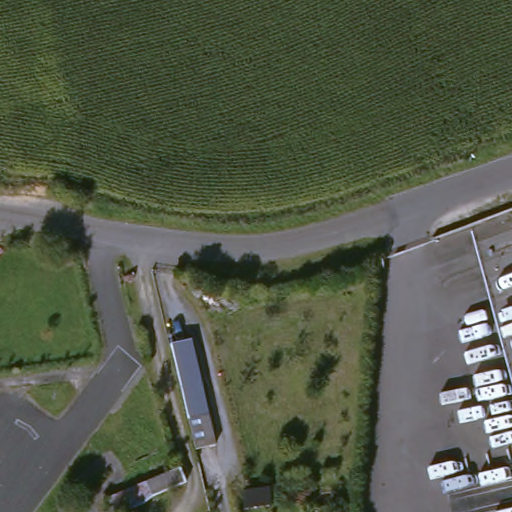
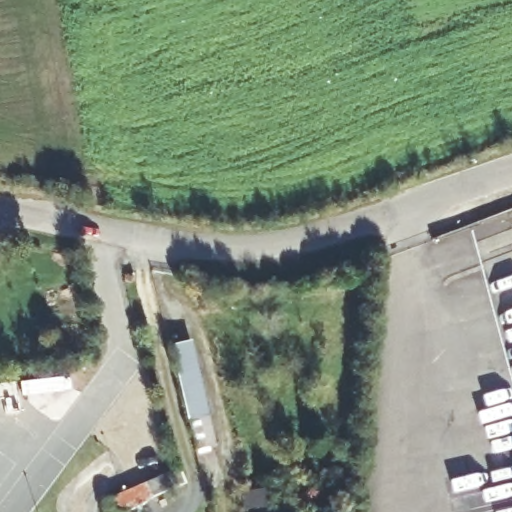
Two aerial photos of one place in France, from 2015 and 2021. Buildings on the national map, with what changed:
unchanged [(211,453),(193,460),(170,351),(188,349),(211,453)]
unchanged [(143,512),(98,512),(96,506),(176,472),(183,491),(143,512)]

